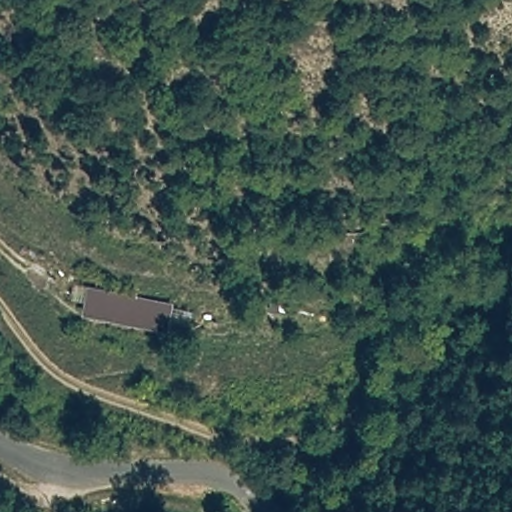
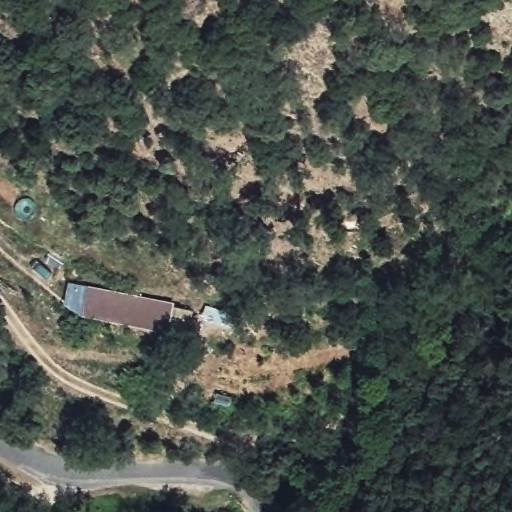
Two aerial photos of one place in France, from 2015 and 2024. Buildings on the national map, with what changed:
unchanged [(173,303),(168,334),(80,318),(85,287),(173,303)]

